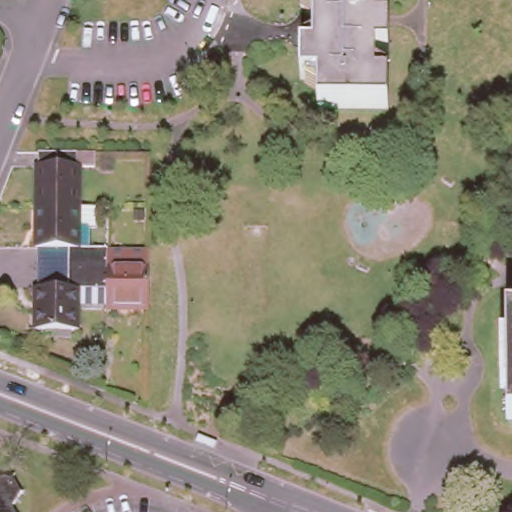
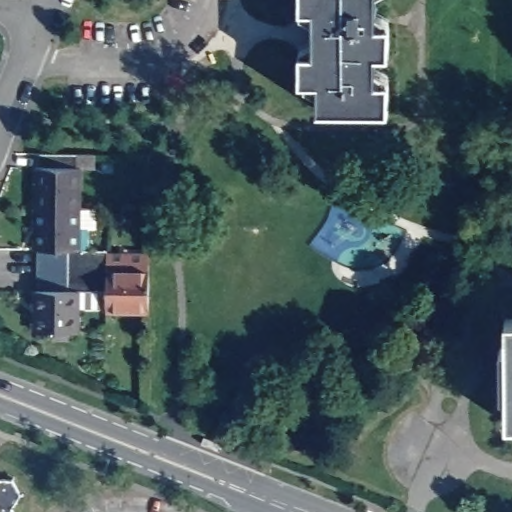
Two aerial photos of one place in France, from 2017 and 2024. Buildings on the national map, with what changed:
unchanged [(300,0),(376,0),(376,25),(389,25),(388,54),(374,54),(374,81),(388,81),(387,110),(316,108),(316,81),(299,81),(299,50),(313,51),(314,9),(299,8),(300,0)]
unchanged [(41,291),(43,291),(44,277),(44,265),(44,254),(41,254),(42,211),(43,169),(43,158),(80,159),(97,159),(97,170),(80,170),(80,212),(102,212),(102,233),(93,233),(93,255),(112,254),(112,256),(155,258),(154,274),(154,312),(112,311),(112,310),(79,310),(79,334),(41,334),(41,291)]
unchanged [(504,419),(504,316),(512,316),(512,419),(504,419)]
unchanged [(15,506),(20,512),(0,512),(0,507),(0,506),(0,505),(0,474),(14,474),(23,491),(15,506)]

